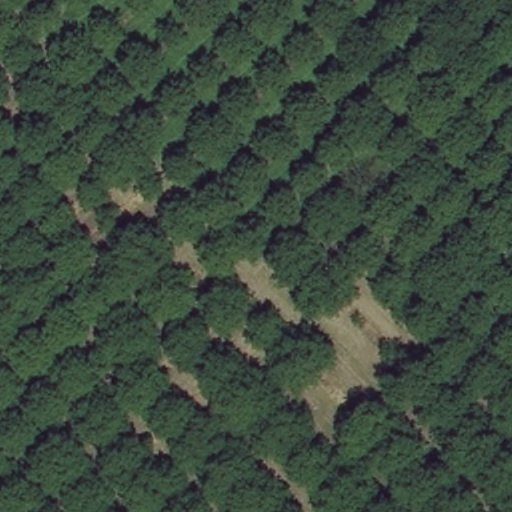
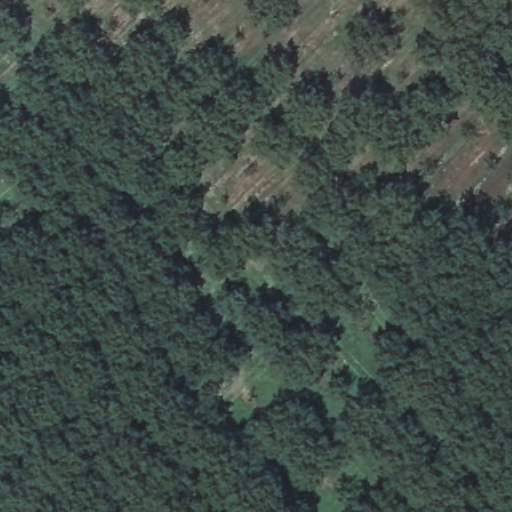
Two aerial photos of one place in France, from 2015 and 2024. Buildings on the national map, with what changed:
[]

